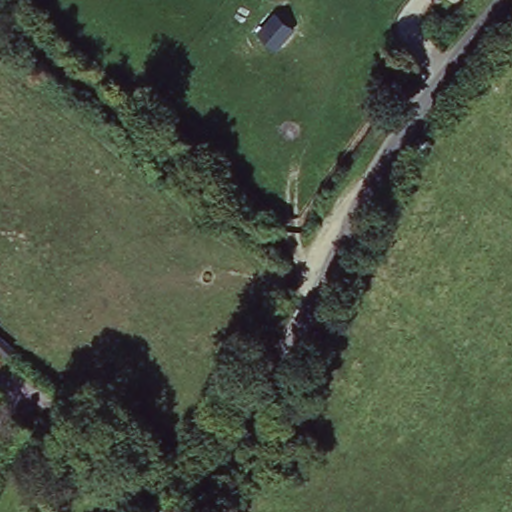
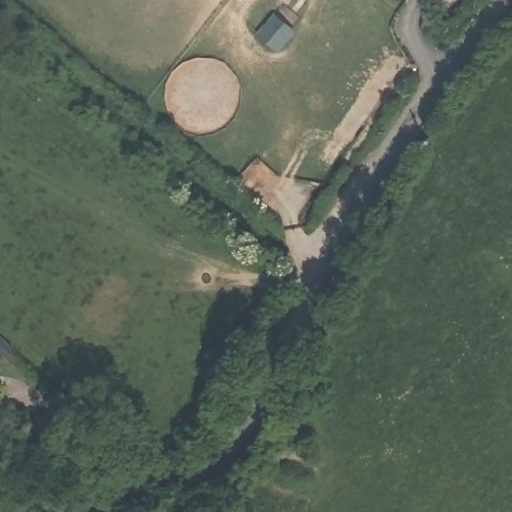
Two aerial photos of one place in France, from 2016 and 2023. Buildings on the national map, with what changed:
unchanged [(289,30),(273,50),(254,34),(270,16),(289,30)]

